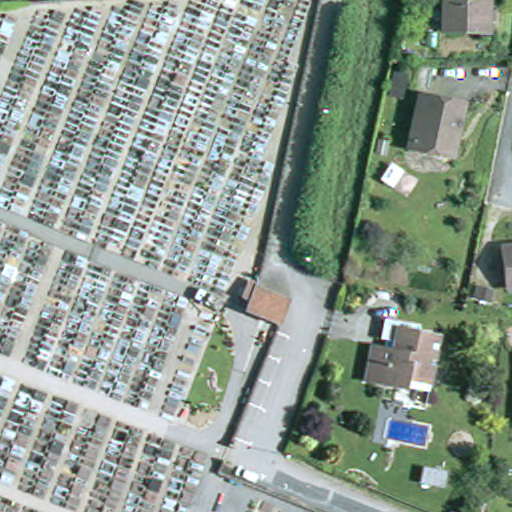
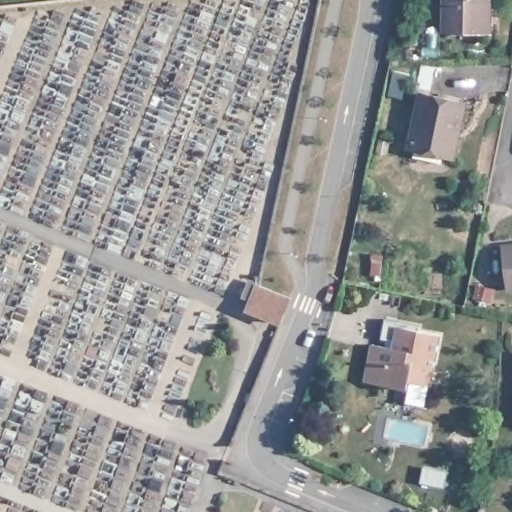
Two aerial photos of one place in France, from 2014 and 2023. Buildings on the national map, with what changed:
unchanged [(451,0),(492,0),(492,39),(451,39),(451,0)]
unchanged [(450,157),(412,150),(422,96),(466,104),(460,135),(455,159),(450,157)]
unchanged [(512,250),(512,272),(508,250),(512,250)]
unchanged [(253,312),(262,290),(292,302),(283,325),(253,312)]
unchanged [(400,391),(368,385),(375,348),(388,350),(388,343),(385,343),(389,323),(424,330),(423,334),(445,338),(435,391),(414,387),(412,394),(400,391)]

